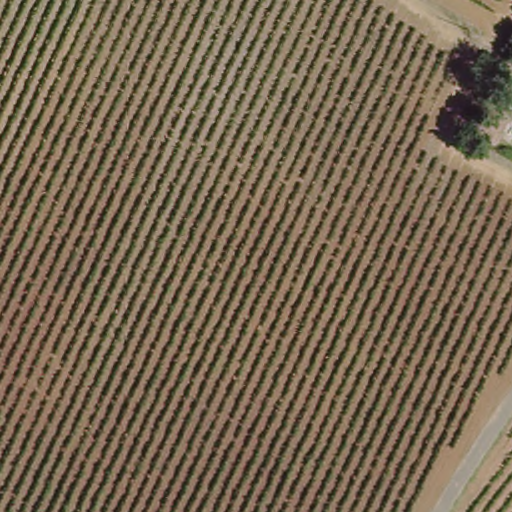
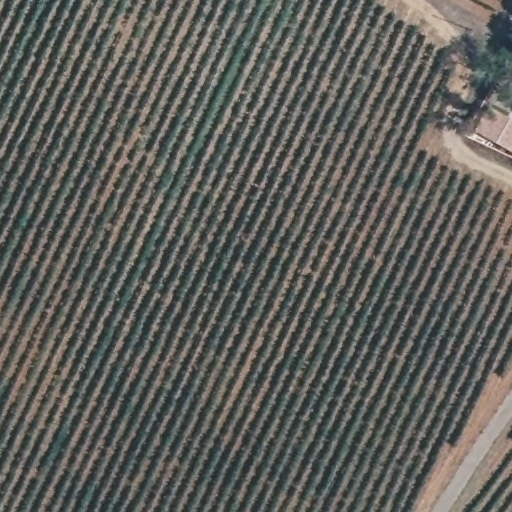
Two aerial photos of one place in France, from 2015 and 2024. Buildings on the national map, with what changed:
new [(485,106),(512,120),(512,152),(473,130),(485,106)]

